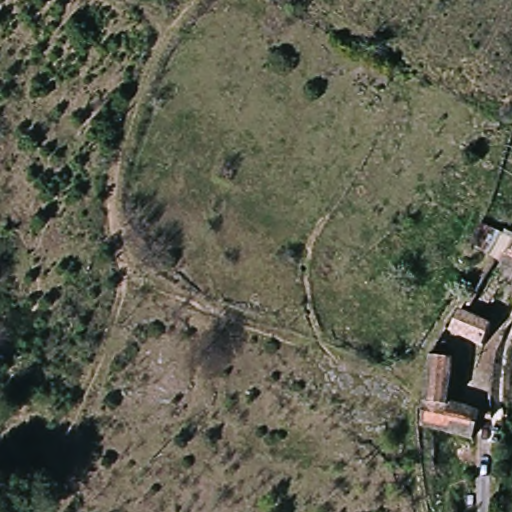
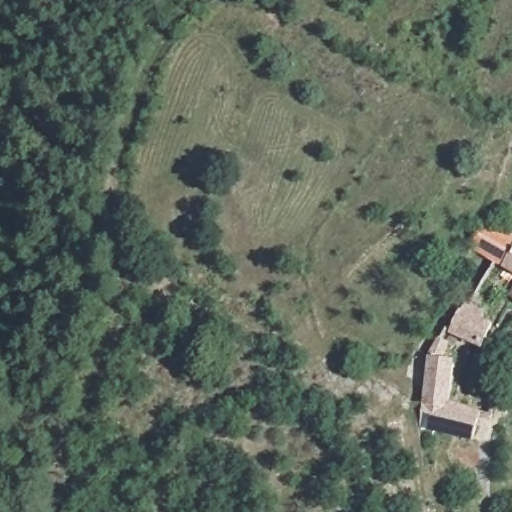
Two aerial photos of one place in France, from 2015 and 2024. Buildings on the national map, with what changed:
unchanged [(509,257),(512,249),(512,259),(509,257)]
unchanged [(470,303),(491,322),(483,346),(454,325),(470,303)]
unchanged [(431,352),(462,364),(455,401),(485,410),(473,435),(424,414),(431,352)]

